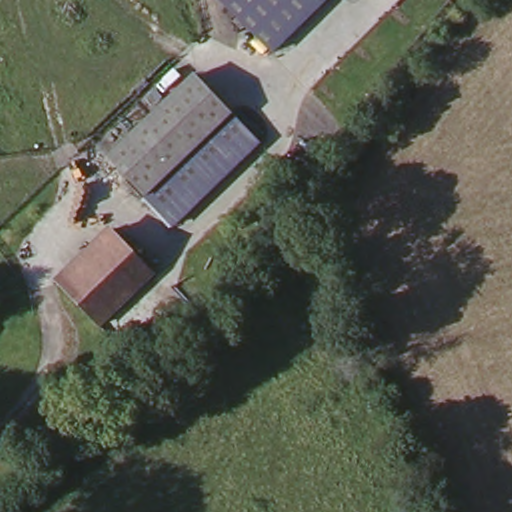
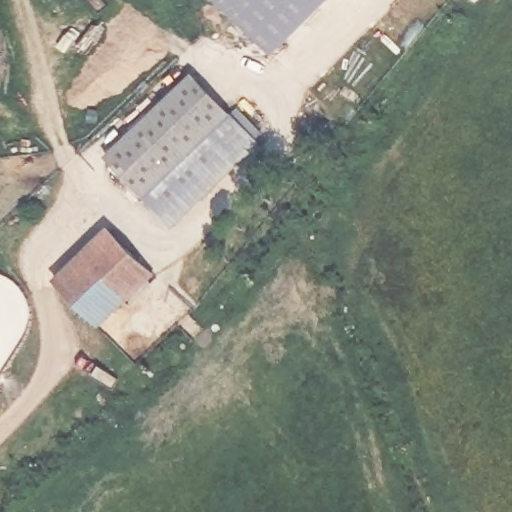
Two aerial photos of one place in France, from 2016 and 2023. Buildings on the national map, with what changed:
unchanged [(278,53),(221,0),(327,0),(278,53)]
unchanged [(192,77),(258,141),(174,228),(108,165),(192,77)]
unchanged [(114,230),(158,273),(101,330),(58,287),(114,230)]

